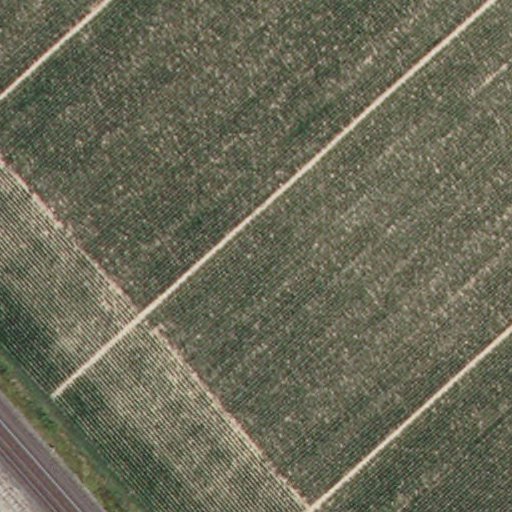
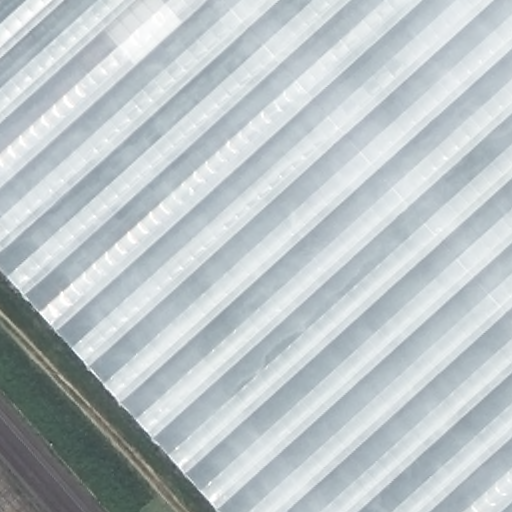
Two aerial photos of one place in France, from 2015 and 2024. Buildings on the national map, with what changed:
new [(0,267),(0,0),(512,0),(512,512),(222,512),(0,267)]

